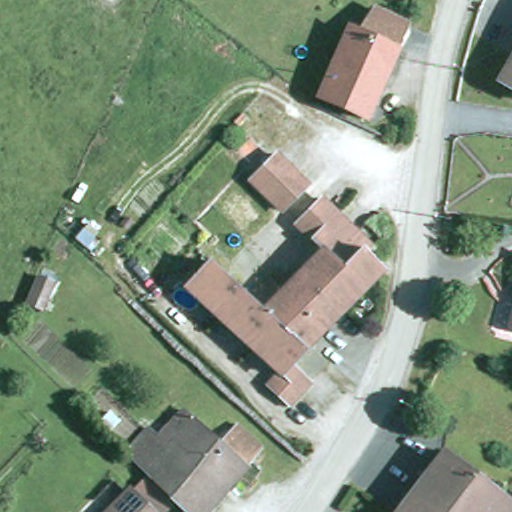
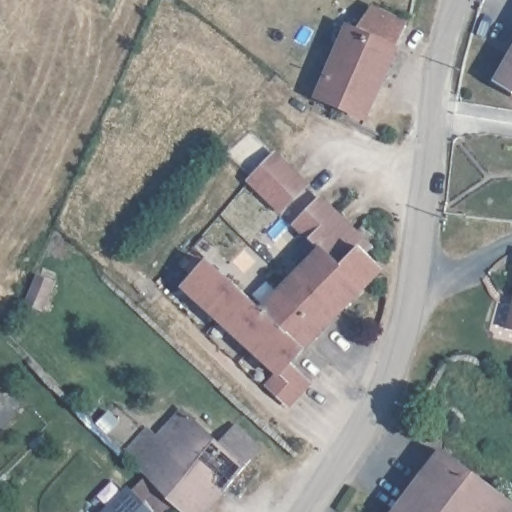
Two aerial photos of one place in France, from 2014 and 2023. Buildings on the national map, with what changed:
unchanged [(365,113),(317,92),(348,23),(357,27),(372,4),(375,6),(402,21),(405,22),(365,113)]
unchanged [(512,85),(500,78),(512,57),(512,85)]
unchanged [(250,184),(275,157),(307,186),(282,213),(250,184)]
unchanged [(295,363),(316,381),(295,405),(273,386),(283,374),(187,289),(212,263),(227,277),(228,276),(267,310),(298,276),(300,278),(323,253),(322,251),(323,251),(297,226),(322,199),(355,232),(368,244),(363,250),(385,269),(295,363)]
unchanged [(40,310),(27,304),(39,279),(51,285),(40,310)]
unchanged [(100,424),(109,415),(118,424),(110,433),(100,424)]
unchanged [(262,450),(206,512),(185,512),(167,493),(145,472),(126,453),(148,429),(168,447),(193,419),(219,443),(235,426),(262,450)]
unchanged [(512,512),(394,512),(438,456),(512,512)]
unchanged [(151,512),(107,512),(128,490),(151,512)]

